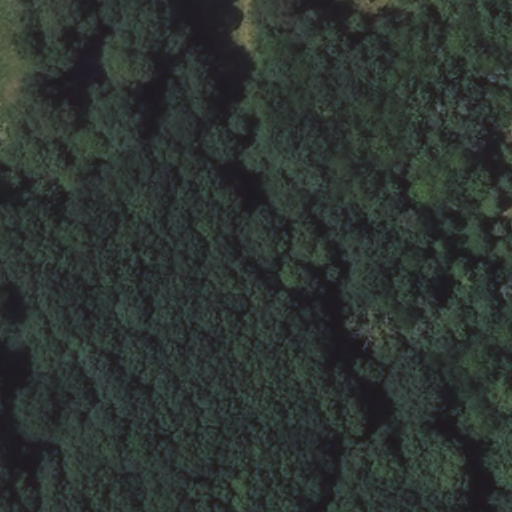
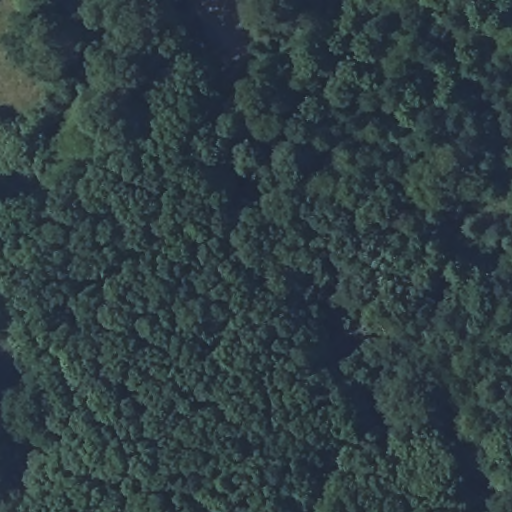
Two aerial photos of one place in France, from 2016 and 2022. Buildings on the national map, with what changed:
[]

